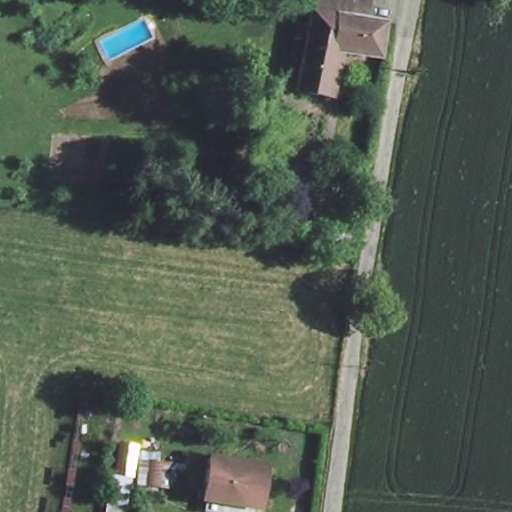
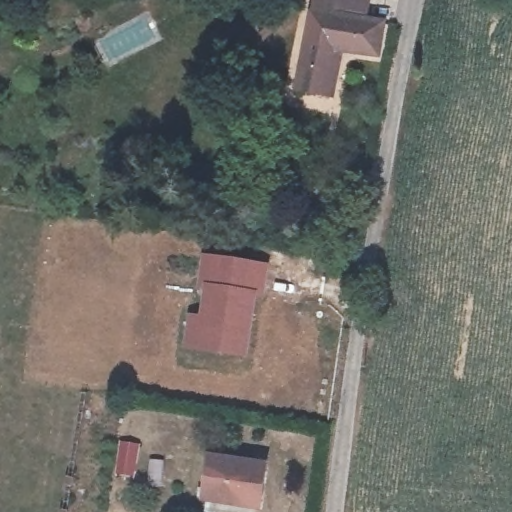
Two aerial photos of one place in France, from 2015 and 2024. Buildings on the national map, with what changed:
unchanged [(387,16),(381,50),(348,43),(341,87),(302,81),(314,0),(366,0),(366,12),(387,16)]
new [(257,297),(248,357),(184,348),(189,315),(200,317),(205,289),(197,287),(203,255),(269,265),(264,297),(257,297)]
unchanged [(210,501),(212,488),(208,487),(212,447),(271,458),(266,498),(260,497),(259,510),(210,501)]

